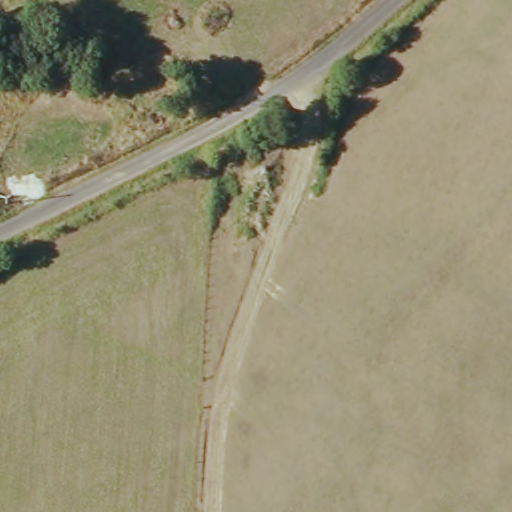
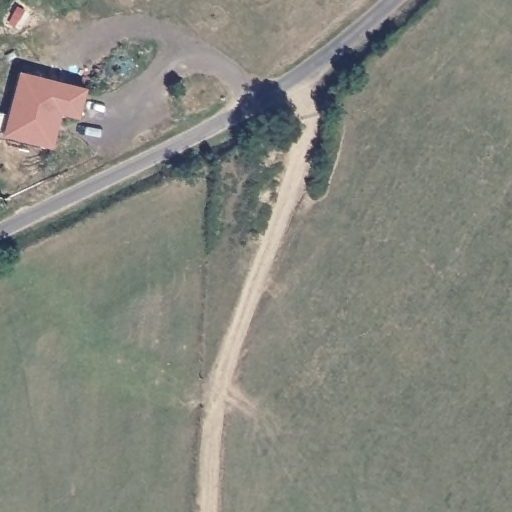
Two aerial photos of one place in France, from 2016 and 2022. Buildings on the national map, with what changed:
new [(5,135),(22,70),(88,88),(80,118),(62,114),(54,147),(5,135)]

